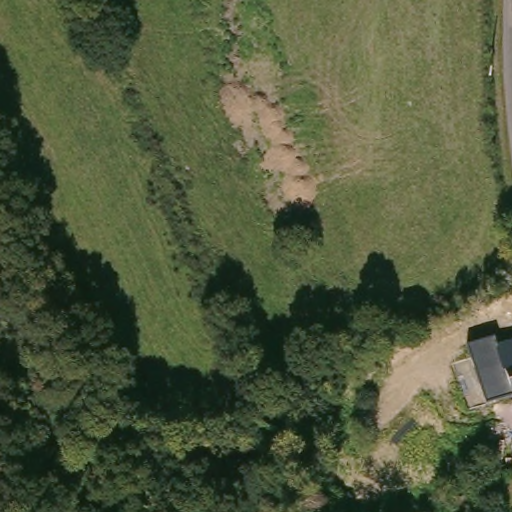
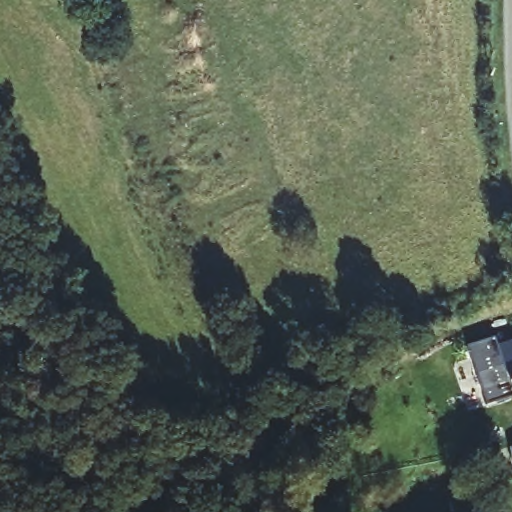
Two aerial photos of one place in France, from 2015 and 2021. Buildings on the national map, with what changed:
unchanged [(506,410),(495,379),(489,363),(504,359),(512,355),(512,407),(506,410)]

